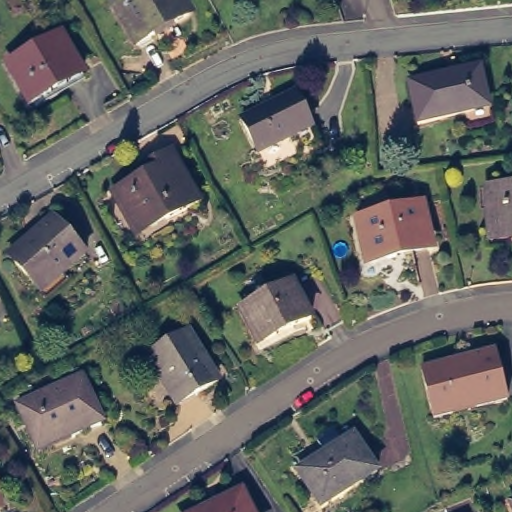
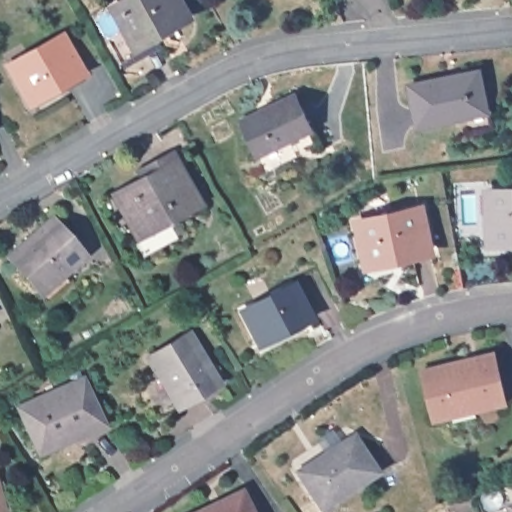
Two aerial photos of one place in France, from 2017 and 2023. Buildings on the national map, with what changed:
unchanged [(189,10),(136,40),(115,1),(117,0),(183,0),(189,10)]
unchanged [(83,68),(29,99),(8,60),(61,30),(83,68)]
unchanged [(479,65),(488,102),(470,106),(471,110),(418,120),(409,80),(479,65)]
unchanged [(316,124),(263,150),(246,115),(300,89),(316,124)]
unchanged [(138,227),(118,189),(148,172),(143,165),(151,161),(176,148),(203,200),(171,217),(141,233),(138,227)]
unchanged [(489,231),(488,204),(487,186),(491,186),(512,185),(512,236),(490,237),(489,231)]
unchanged [(431,244),(396,251),(396,255),(368,261),(357,216),(422,201),(431,244)]
unchanged [(43,297),(38,291),(41,289),(8,250),(50,212),(84,251),(63,270),(68,275),(43,297)]
unchanged [(305,320),(253,346),(235,310),(287,284),(305,320)]
unchanged [(216,378),(177,401),(148,352),(188,329),(216,378)]
unchanged [(512,397),(438,415),(426,365),(499,347),(512,397)]
unchanged [(39,441),(22,402),(86,374),(106,420),(75,433),(43,448),(39,441)]
unchanged [(381,467),(325,503),(303,470),(328,454),(326,451),(358,430),(381,467)]
unchanged [(252,512),(192,512),(240,488),(252,512)]
unchanged [(0,507),(0,502),(1,506),(0,507)]
unchanged [(511,506),(512,506),(512,509),(511,506)]

